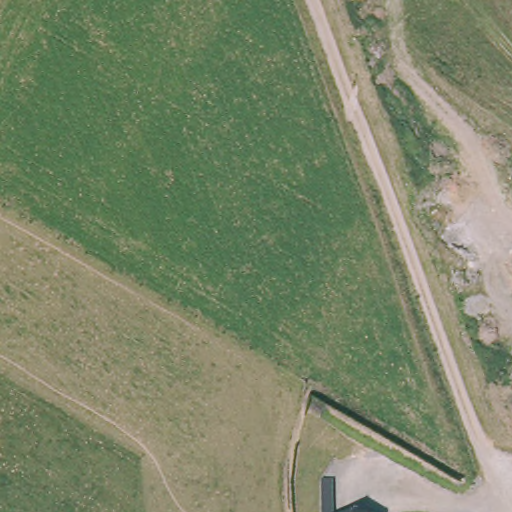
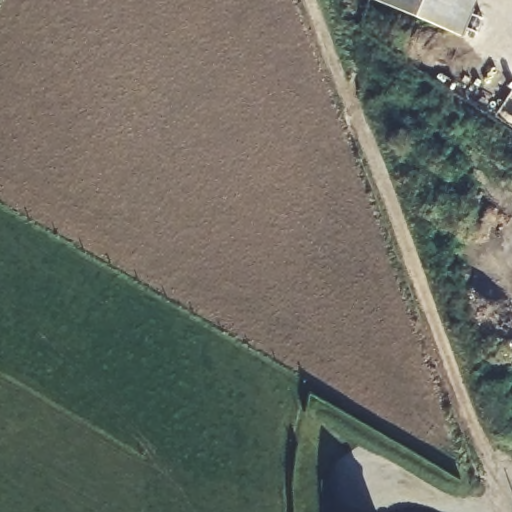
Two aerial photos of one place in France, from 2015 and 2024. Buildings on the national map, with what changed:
new [(463,41),(373,3),(374,0),(481,0),(463,41)]

